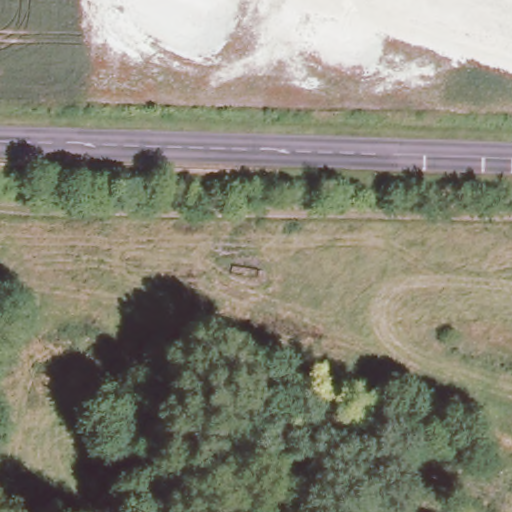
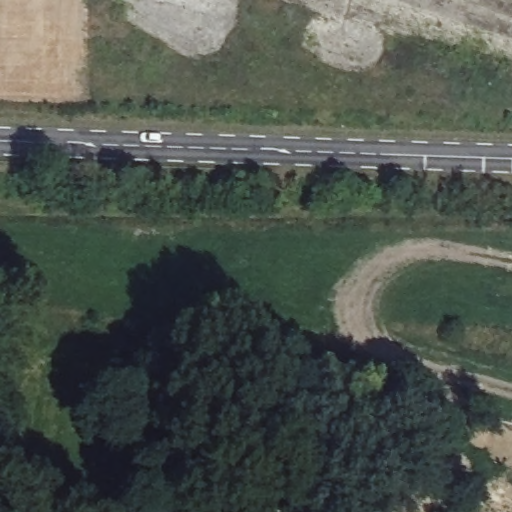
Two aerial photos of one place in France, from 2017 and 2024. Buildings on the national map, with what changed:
[]

